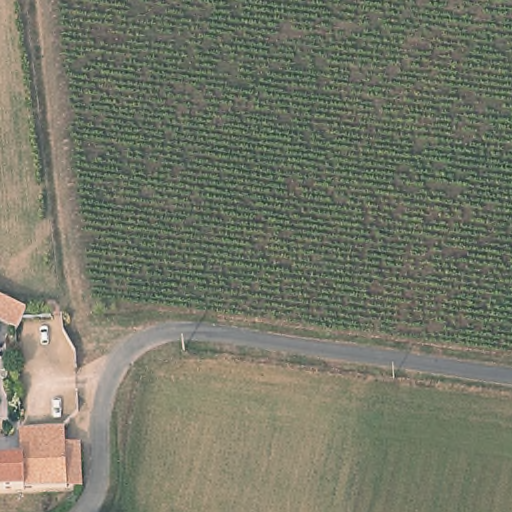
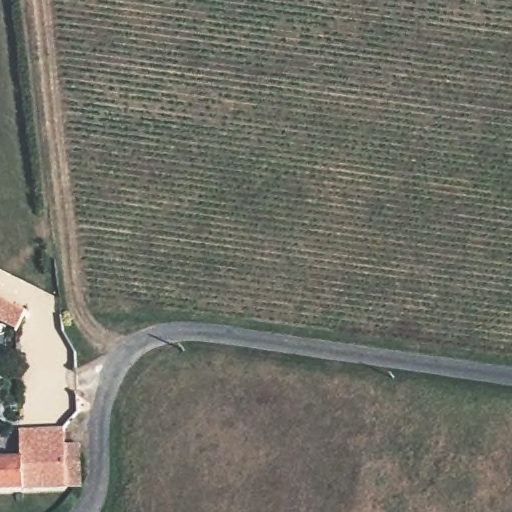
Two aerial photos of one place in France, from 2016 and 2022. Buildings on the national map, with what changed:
unchanged [(0,486),(0,454),(26,453),(25,428),(70,424),(70,441),(87,440),(88,481),(73,482),(0,486)]

